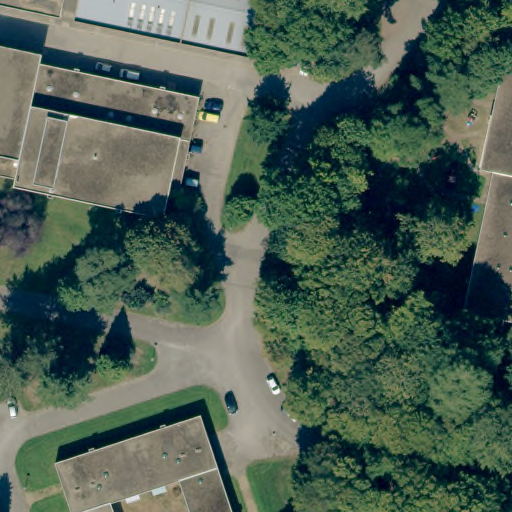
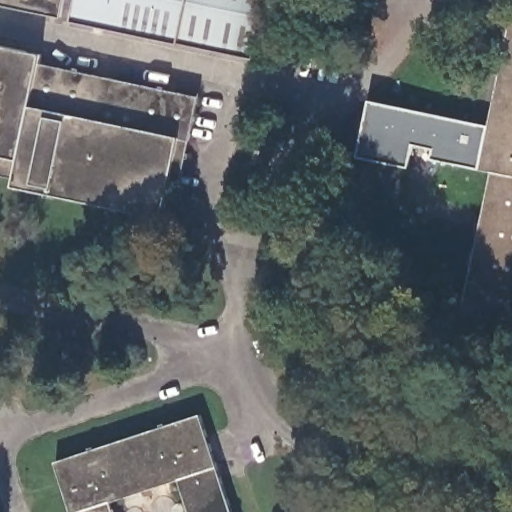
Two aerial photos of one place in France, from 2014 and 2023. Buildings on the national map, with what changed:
unchanged [(2,0),(62,0),(59,12),(2,0)]
unchanged [(74,14),(78,0),(262,0),(251,53),(74,14)]
unchanged [(507,18),(512,19),(512,29),(481,171),(474,169),(507,18)]
unchanged [(495,174),(486,172),(481,171),(512,29),(512,292),(506,321),(512,322),(512,358),(510,368),(489,364),(499,319),(466,313),(497,174),(495,174)]
unchanged [(40,50),(38,60),(198,93),(189,135),(178,185),(170,183),(164,213),(14,182),(16,173),(0,169),(0,42),(40,50)]
new [(434,159),(436,149),(414,144),(409,167),(359,156),(370,101),(483,125),(474,169),(434,159)]
unchanged [(457,311),(486,172),(495,174),(497,174),(466,313),(457,311)]
unchanged [(512,292),(512,322),(506,321),(512,292)]
unchanged [(195,409),(229,512),(185,512),(174,477),(107,498),(112,512),(69,512),(51,457),(195,409)]

